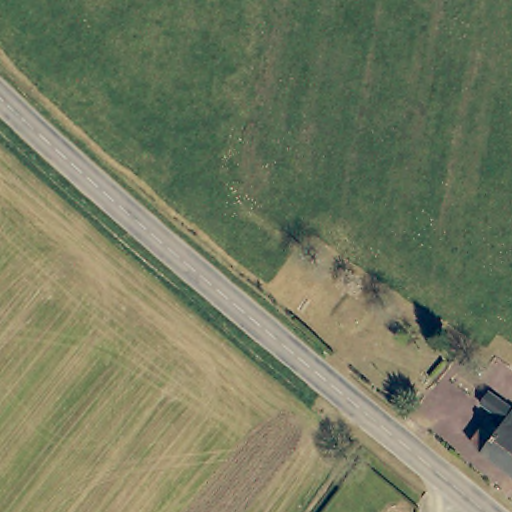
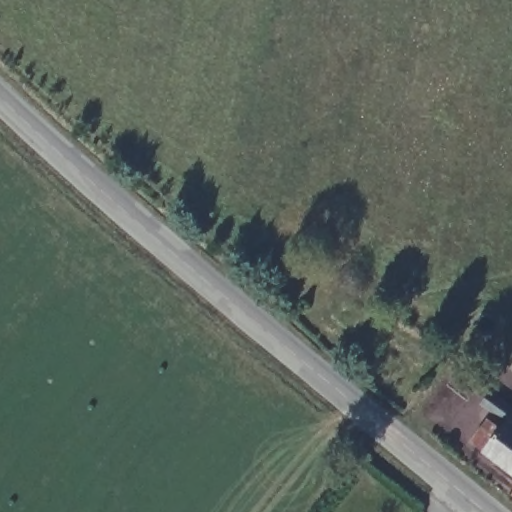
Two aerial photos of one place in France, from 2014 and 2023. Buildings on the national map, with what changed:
unchanged [(512,433),(482,408),(496,392),(512,405),(512,478),(489,460),(473,447),(490,427),(505,441),(512,433)]

